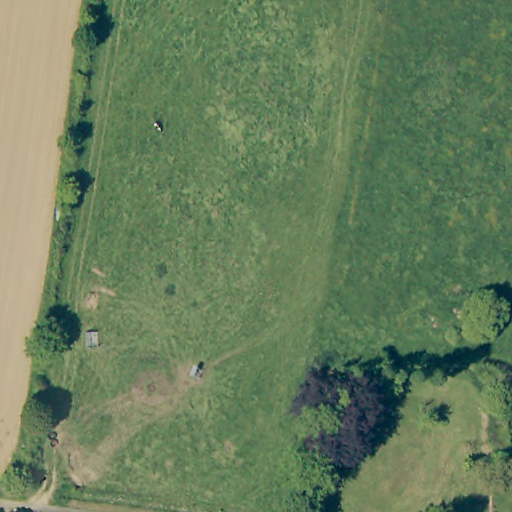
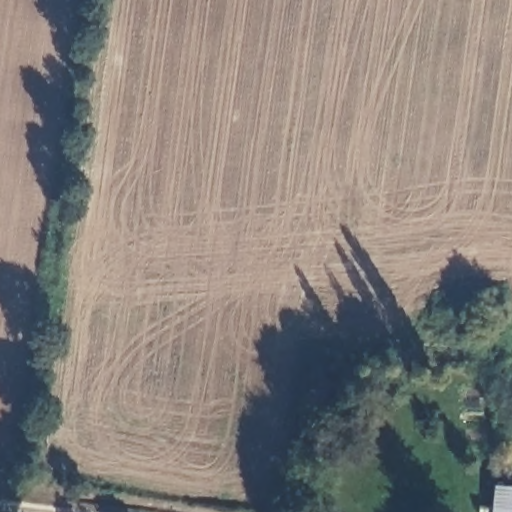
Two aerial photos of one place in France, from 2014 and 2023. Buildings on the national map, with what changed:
new [(512,487),(512,512),(490,512),(493,486),(512,487)]

